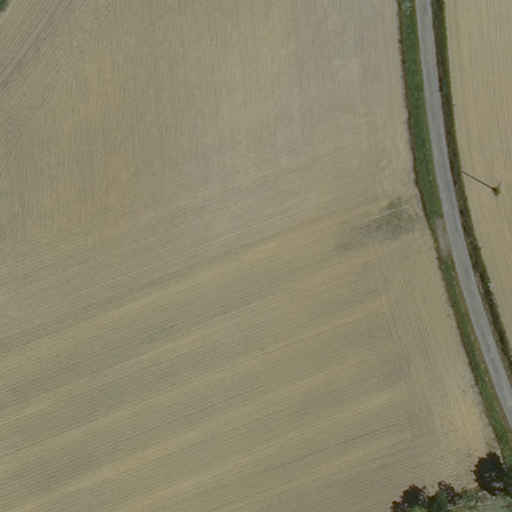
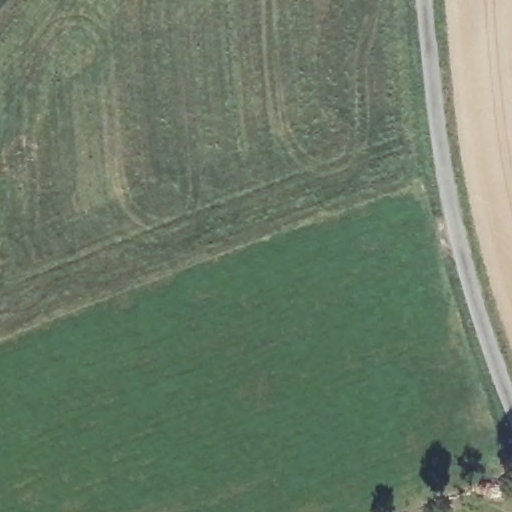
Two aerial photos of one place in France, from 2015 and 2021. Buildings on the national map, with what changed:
[]

